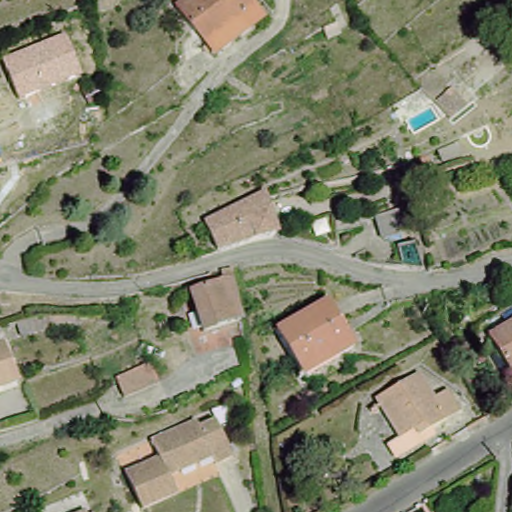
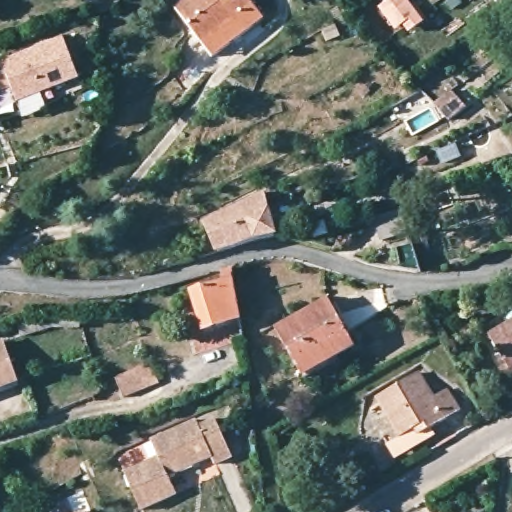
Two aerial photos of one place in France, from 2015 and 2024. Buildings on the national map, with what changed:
unchanged [(168,15),(189,0),(239,0),(258,24),(206,64),(168,15)]
new [(408,0),(425,22),(409,34),(403,26),(396,31),(379,7),(388,0),(408,0)]
unchanged [(502,0),(506,0),(504,2),(502,0)]
unchanged [(3,59),(63,36),(80,77),(18,101),(3,59)]
unchanged [(447,95),(460,111),(446,122),(433,105),(447,95)]
unchanged [(454,151),(458,164),(439,170),(434,159),(454,151)]
unchanged [(260,195),(272,239),(248,240),(236,249),(215,257),(198,223),(260,195)]
unchanged [(371,211),(398,204),(406,229),(378,236),(371,211)]
unchanged [(406,238),(416,268),(392,266),(386,244),(406,238)]
unchanged [(231,277),(241,322),(206,335),(192,291),(231,277)]
unchanged [(272,340),(325,310),(351,352),(300,383),(272,340)]
unchanged [(35,315),(70,315),(68,328),(42,327),(10,337),(5,323),(35,315)]
unchanged [(511,367),(504,370),(484,338),(512,322),(512,369),(511,367)]
unchanged [(0,385),(0,341),(15,380),(0,385)]
unchanged [(115,394),(110,383),(148,370),(156,388),(118,402),(115,394)]
unchanged [(391,459),(381,444),(395,436),(373,398),(415,375),(429,397),(444,387),(458,410),(428,427),(432,435),(391,459)]
unchanged [(197,427),(200,434),(218,426),(235,465),(217,472),(214,465),(168,485),(176,503),(157,512),(140,512),(125,480),(160,465),(151,447),(197,427)]

